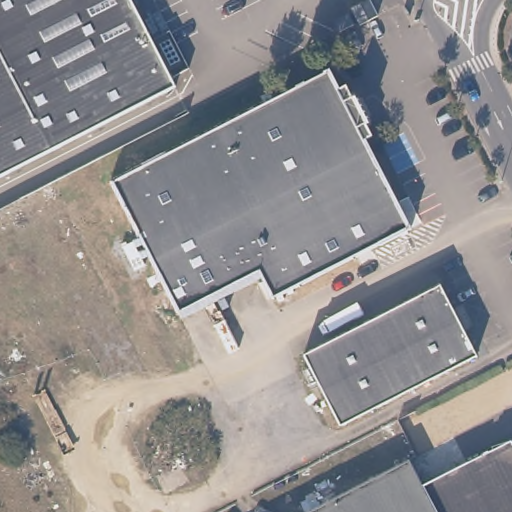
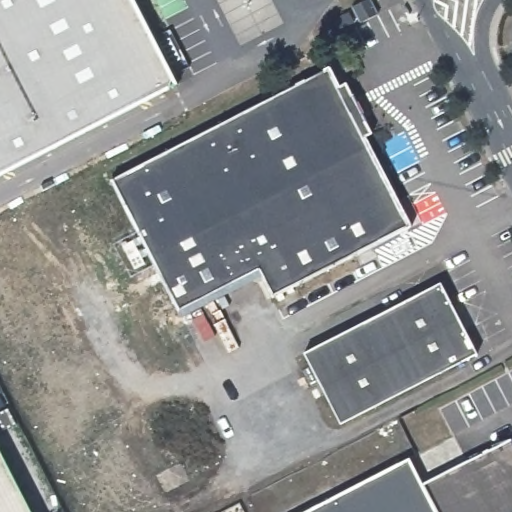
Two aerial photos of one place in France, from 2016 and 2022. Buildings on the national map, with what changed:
unchanged [(0,170),(0,0),(124,0),(167,85),(0,170)]
unchanged [(351,6),(365,0),(370,0),(379,15),(361,24),(351,6)]
unchanged [(338,87),(345,82),(352,95),(345,100),(358,125),(366,122),(373,135),(365,139),(411,226),(274,298),(260,272),(178,313),(110,180),(328,67),(338,87)]
unchanged [(476,358),(339,429),(303,358),(440,288),(476,358)]
unchanged [(512,512),(432,512),(420,487),(511,440),(512,443),(512,512)]
new [(32,512),(0,512),(0,449),(32,512)]
unchanged [(405,458),(420,487),(432,512),(301,512),(405,458)]

